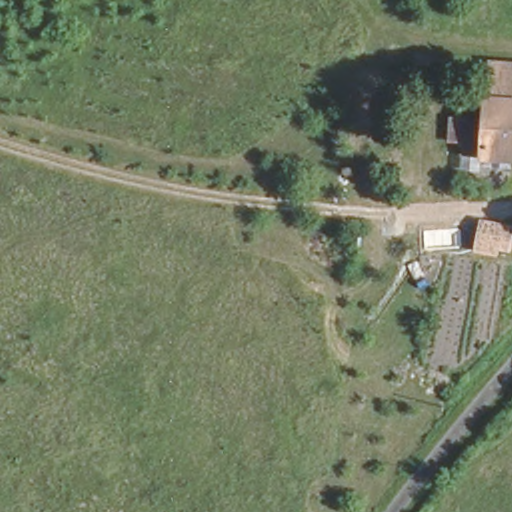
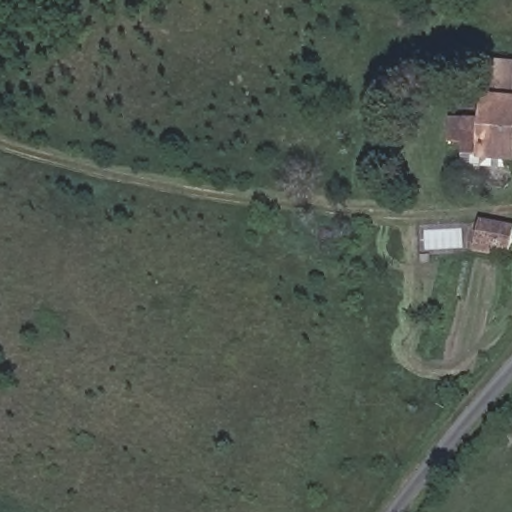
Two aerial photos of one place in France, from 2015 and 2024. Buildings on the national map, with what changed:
unchanged [(459,152),(462,108),(482,108),(487,43),(512,47),(512,158),(459,152)]
unchanged [(497,255),(474,251),(479,219),(512,226),(512,242),(510,252),(499,250),(497,255)]

